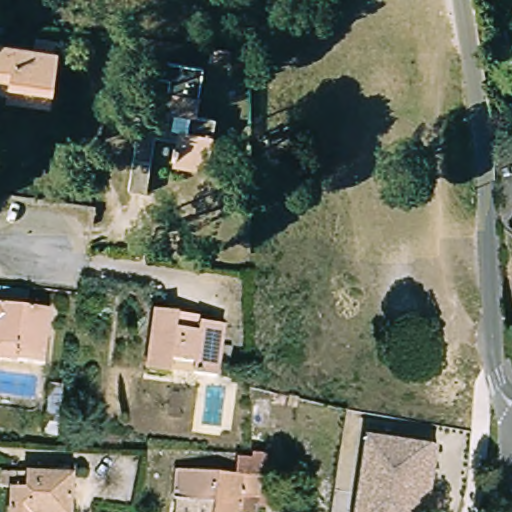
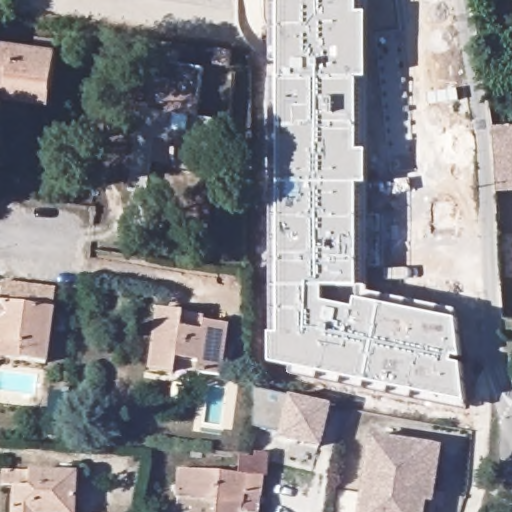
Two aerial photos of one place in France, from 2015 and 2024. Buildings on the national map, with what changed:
new [(361,11),(370,11),(370,78),(365,78),(365,148),(369,149),(370,183),(366,182),(368,284),(370,291),(458,309),(460,317),(468,400),(467,409),(291,376),(293,367),(271,363),(272,333),(272,80),(281,80),(281,64),(272,62),(273,0),(361,0),(361,11)]
unchanged [(8,98),(9,92),(0,91),(0,45),(54,52),(49,90),(47,103),(8,98)]
unchanged [(196,172),(177,169),(180,145),(160,142),(152,198),(133,196),(146,101),(170,105),(174,75),(159,72),(162,55),(209,62),(202,111),(220,113),(214,166),(213,175),(196,172)]
new [(512,191),(497,192),(493,132),(512,131),(512,191)]
unchanged [(53,310),(45,362),(1,356),(0,356),(0,301),(53,310)]
unchanged [(181,317),(179,332),(202,336),(204,326),(227,330),(220,378),(196,375),(197,366),(175,362),(173,377),(149,373),(158,313),(181,317)]
new [(326,444),(284,436),(284,431),(251,425),(251,386),(334,402),(326,444)]
unchanged [(444,446),(435,500),(428,498),(426,512),(362,512),(375,433),(444,446)]
unchanged [(239,473),(241,457),(255,458),(255,453),(268,454),(266,476),(264,476),(260,512),(175,512),(180,468),(239,473)]
unchanged [(13,512),(14,486),(29,487),(30,471),(77,473),(74,512),(13,512)]

